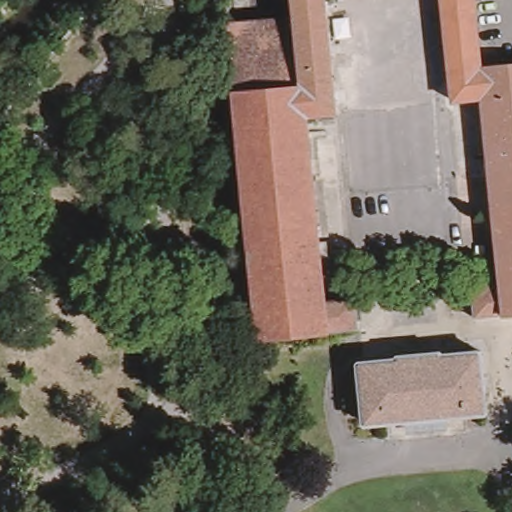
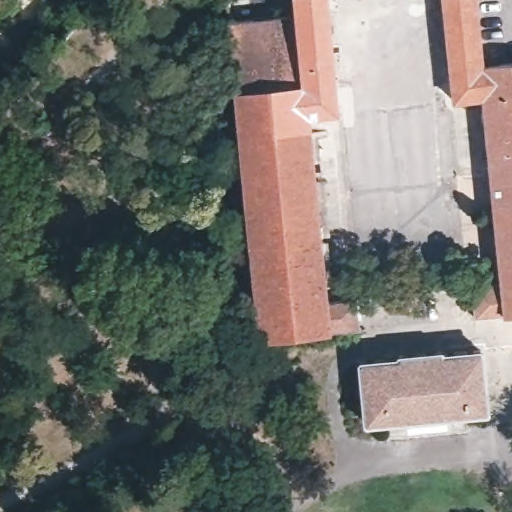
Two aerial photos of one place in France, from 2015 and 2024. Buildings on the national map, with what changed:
unchanged [(362,328),(334,330),(266,336),(232,25),(300,16),(298,0),(328,0),(339,112),(311,115),(325,258),(330,301),(359,298),(362,328)]
unchanged [(483,65),(486,99),(484,99),(455,102),(444,0),(476,0),(483,65)]
unchanged [(484,99),(486,99),(483,65),(512,62),(512,314),(505,315),(478,318),(474,286),(502,283),(484,99)]
unchanged [(490,408),(369,422),(361,362),(484,347),(490,408)]

